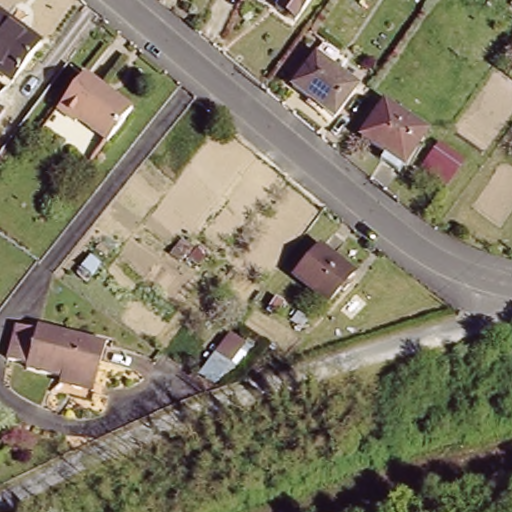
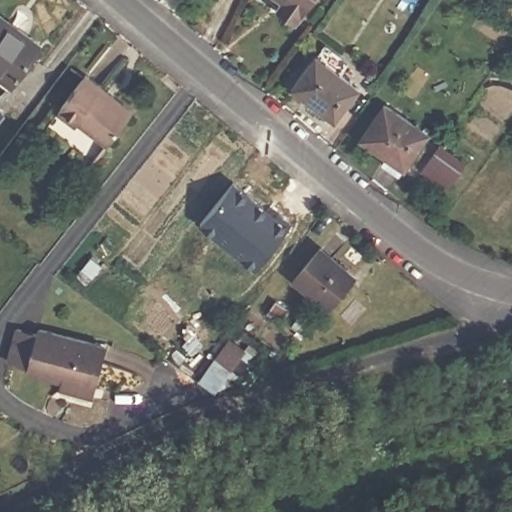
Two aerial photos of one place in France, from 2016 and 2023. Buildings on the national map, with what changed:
unchanged [(295,23),(275,10),(280,1),(279,0),(311,0),(300,15),(295,23)]
unchanged [(0,72),(0,15),(1,14),(44,46),(16,84),(0,72)]
unchanged [(298,81),(320,53),(362,85),(339,114),(298,81)]
unchanged [(134,106),(108,140),(84,121),(82,124),(64,110),(92,74),(134,106)]
unchanged [(387,156),(392,149),(368,132),(391,99),(432,128),(409,161),(404,168),(387,156)]
unchanged [(455,176),(444,191),(419,172),(429,158),(438,144),(465,163),(455,176)]
new [(255,268),(200,223),(234,182),(265,207),(275,216),(274,219),(278,213),(291,224),(255,268)]
unchanged [(325,248),(358,277),(332,307),(299,278),(325,248)]
unchanged [(59,383),(60,376),(29,366),(30,362),(10,356),(19,325),(40,332),(42,325),(107,345),(94,386),(90,385),(89,392),(59,383)]
unchanged [(227,374),(210,363),(227,343),(242,355),(227,374)]

